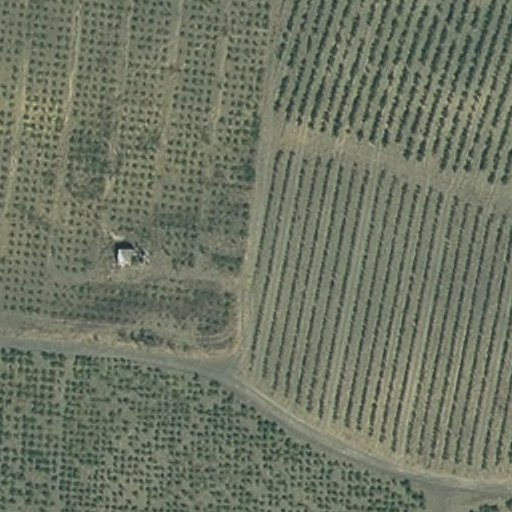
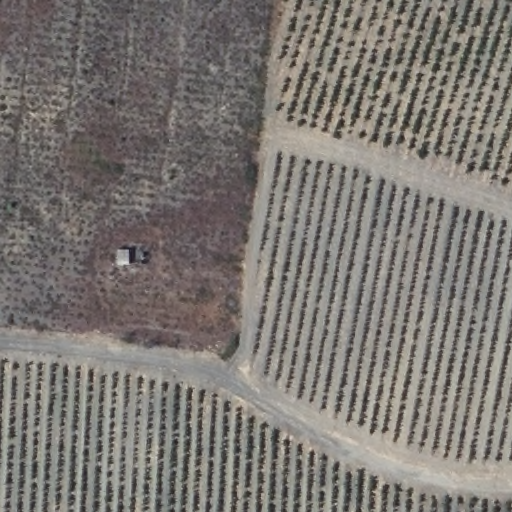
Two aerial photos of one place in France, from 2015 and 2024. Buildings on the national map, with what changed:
unchanged [(119,250),(142,249),(142,270),(120,270),(119,250)]

